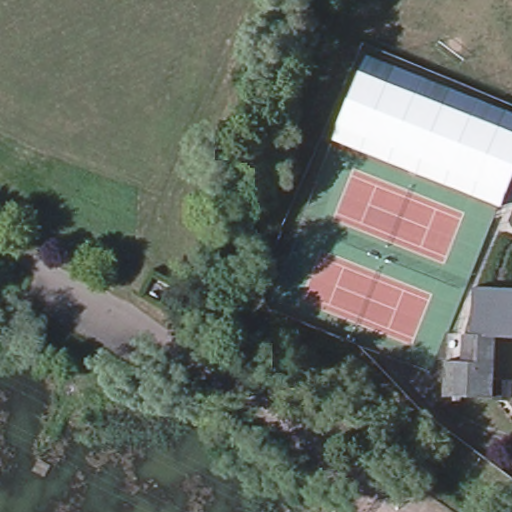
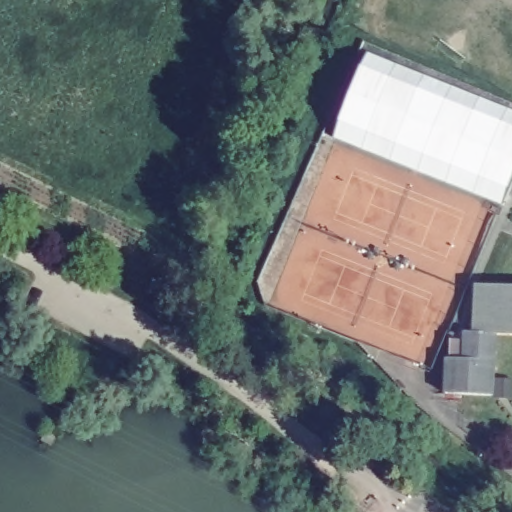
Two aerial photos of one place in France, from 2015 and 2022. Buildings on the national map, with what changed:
unchanged [(512,131),(512,178),(507,193),(500,205),(335,140),(340,125),(362,71),(512,131)]
unchanged [(450,339),(465,339),(473,339),(475,291),(512,292),(512,342),(495,341),(492,402),(445,401),(447,365),(447,345),(448,339),(450,339)]

